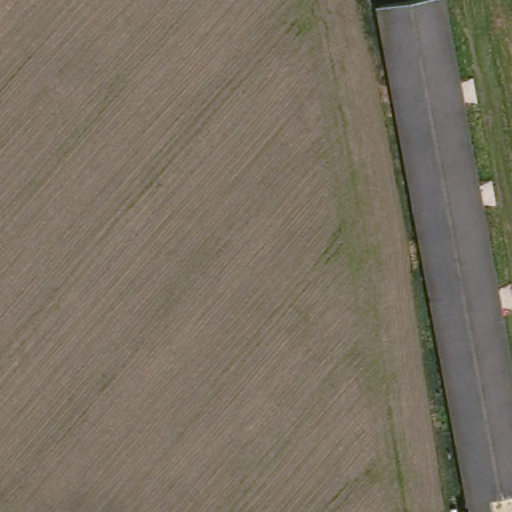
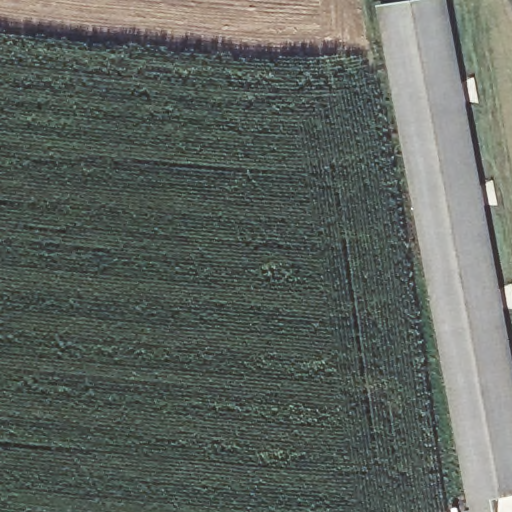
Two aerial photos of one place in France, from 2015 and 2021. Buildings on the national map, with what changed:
unchanged [(512,436),(512,496),(477,502),(479,512),(461,512),(377,0),(441,0),(512,436)]

